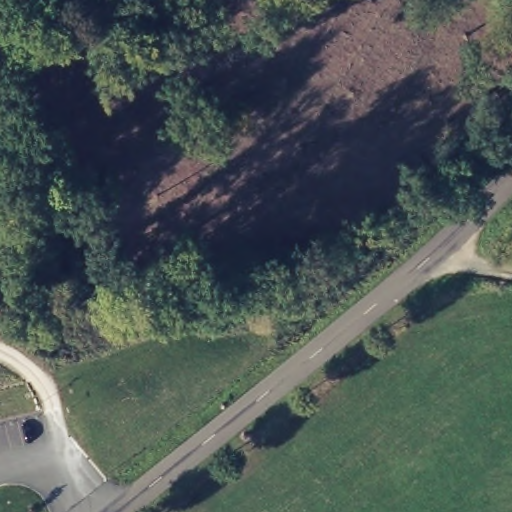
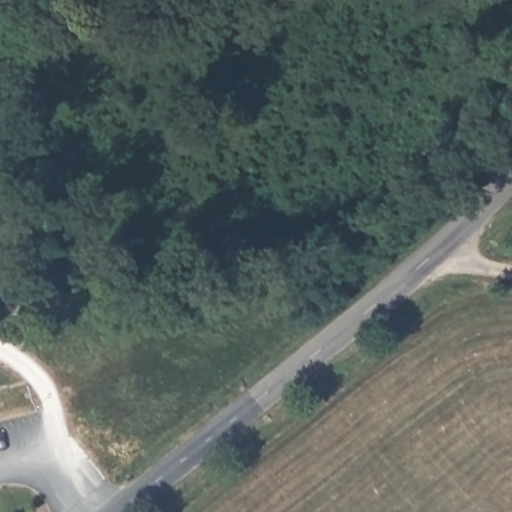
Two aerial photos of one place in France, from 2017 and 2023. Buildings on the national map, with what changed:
[]

